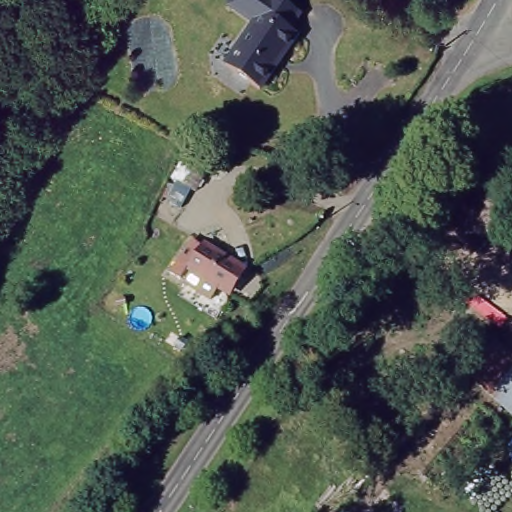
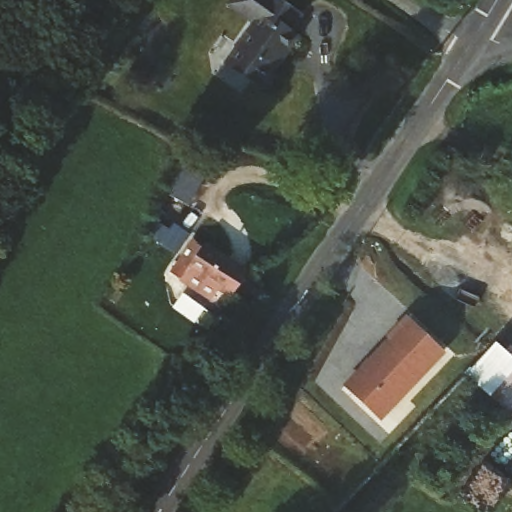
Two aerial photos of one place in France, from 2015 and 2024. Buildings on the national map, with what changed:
unchanged [(224,64),(253,23),(227,4),(230,0),(282,0),(301,13),(289,29),(298,34),(259,88),(224,64)]
unchanged [(198,182),(196,181),(158,241),(146,233),(186,173),(178,168),(186,154),(207,167),(198,182)]
unchanged [(238,256),(240,266),(233,277),(223,281),(218,278),(211,289),(184,273),(191,262),(177,251),(193,228),(238,256)]
new [(444,352),(380,418),(346,386),(391,338),(389,337),(407,317),(444,352)]
unchanged [(512,414),(464,370),(492,338),(512,356),(512,414)]

